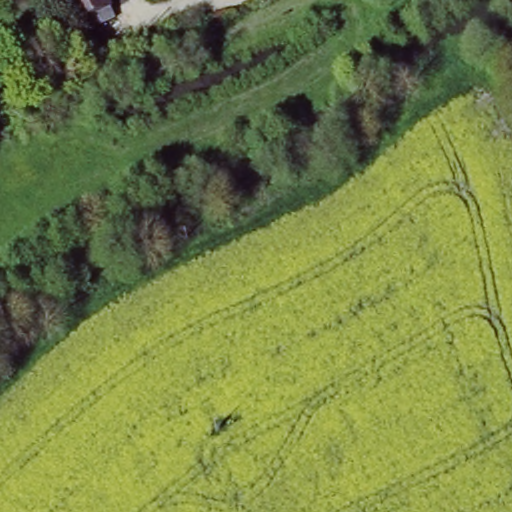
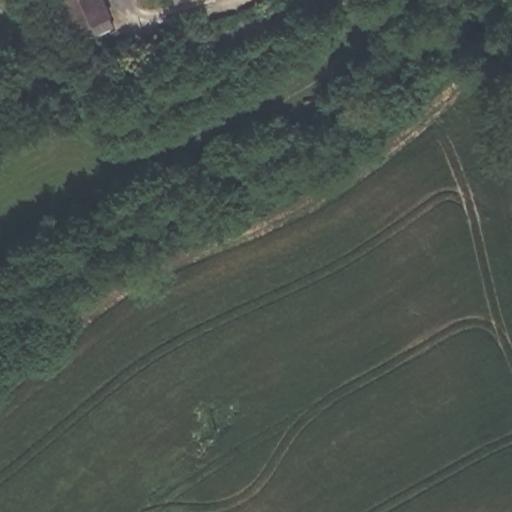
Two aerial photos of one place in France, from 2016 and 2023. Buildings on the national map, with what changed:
unchanged [(115,28),(80,40),(66,0),(104,0),(115,28)]

